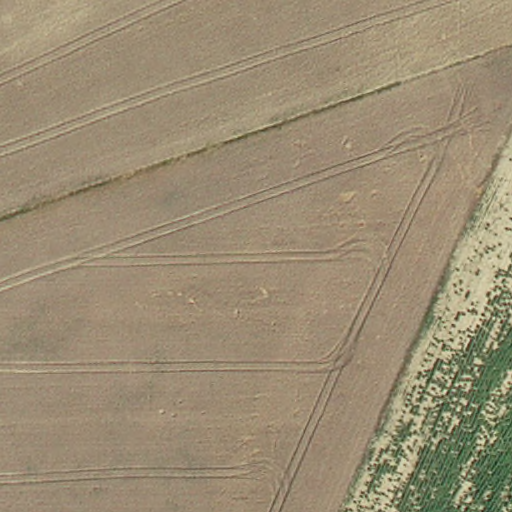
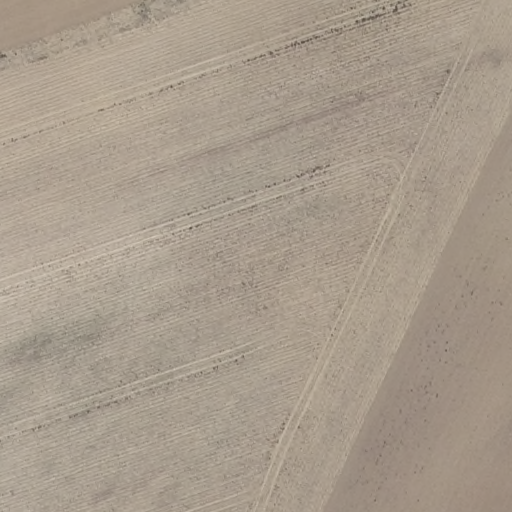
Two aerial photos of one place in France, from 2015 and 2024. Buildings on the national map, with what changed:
[]

